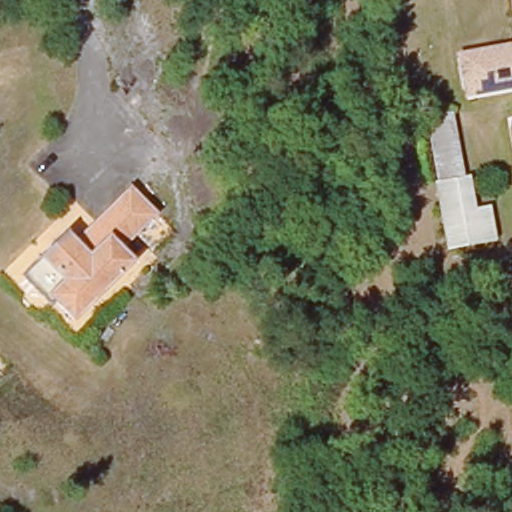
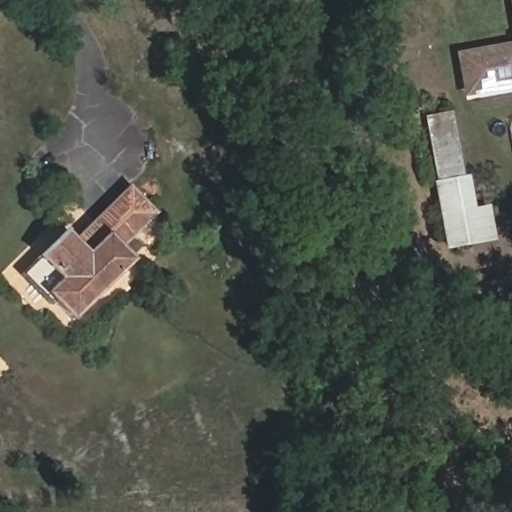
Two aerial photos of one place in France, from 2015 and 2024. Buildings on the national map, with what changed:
unchanged [(511,35),(506,0),(512,0),(512,85),(460,95),(453,51),(509,41),(511,35)]
unchanged [(458,101),(465,170),(476,169),(480,200),(494,200),(497,238),(443,246),(426,106),(458,101)]
unchanged [(163,210),(126,241),(137,258),(73,310),(56,297),(41,308),(18,277),(39,252),(32,246),(62,218),(72,232),(127,181),(163,210)]

